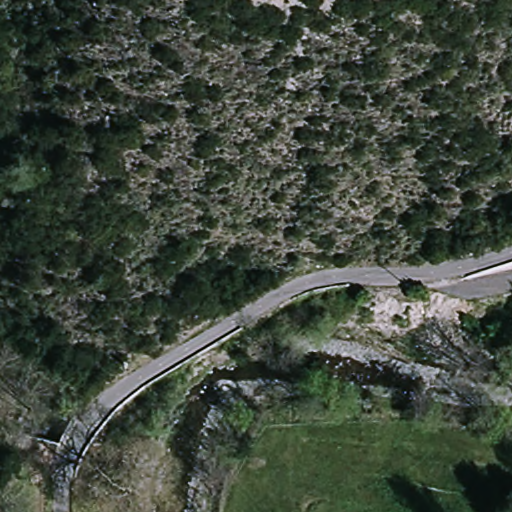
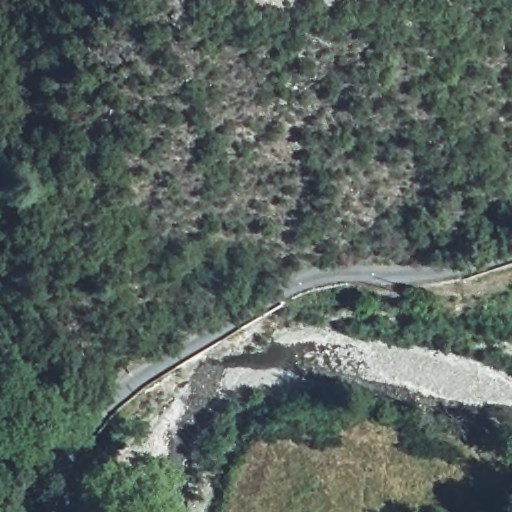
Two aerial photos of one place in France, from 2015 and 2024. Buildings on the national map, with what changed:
[]

